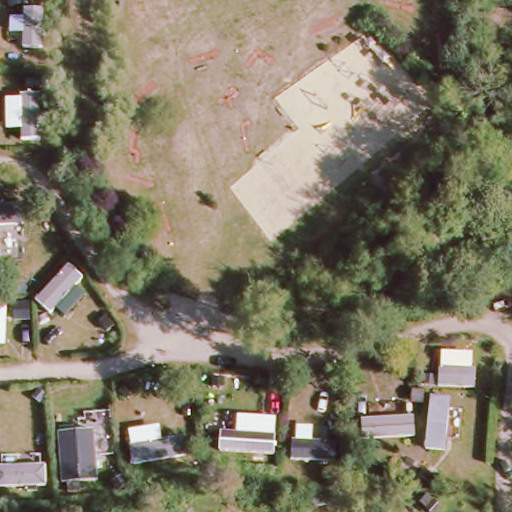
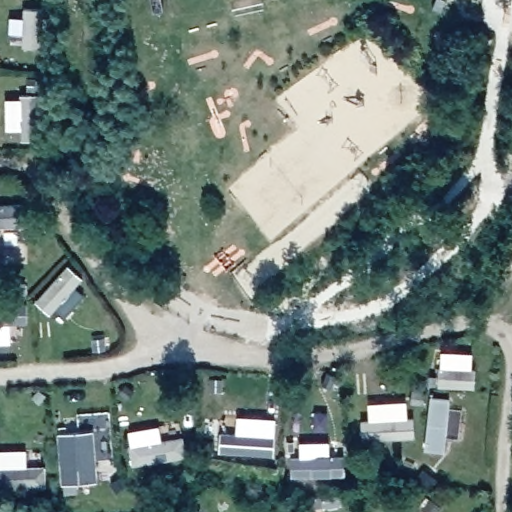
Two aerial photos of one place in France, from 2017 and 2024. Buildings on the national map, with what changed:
unchanged [(7,346),(0,346),(0,305),(9,305),(7,346)]

